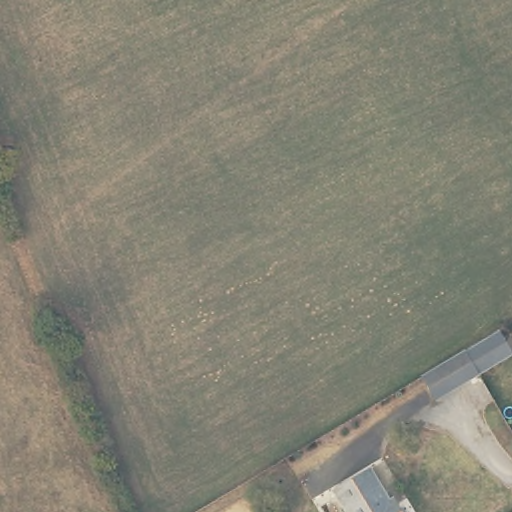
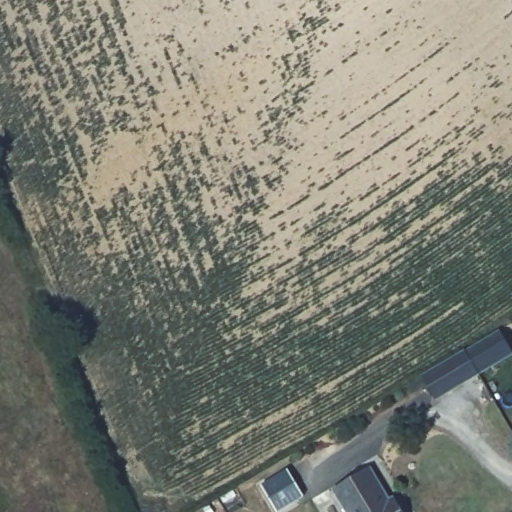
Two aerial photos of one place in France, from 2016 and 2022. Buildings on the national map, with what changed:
unchanged [(481,363),(472,347),(486,339),(495,355),(481,363)]
unchanged [(482,369),(437,394),(424,371),(468,346),(482,369)]
unchanged [(391,496),(401,512),(346,512),(327,483),(360,460),(386,499),(391,496)]

